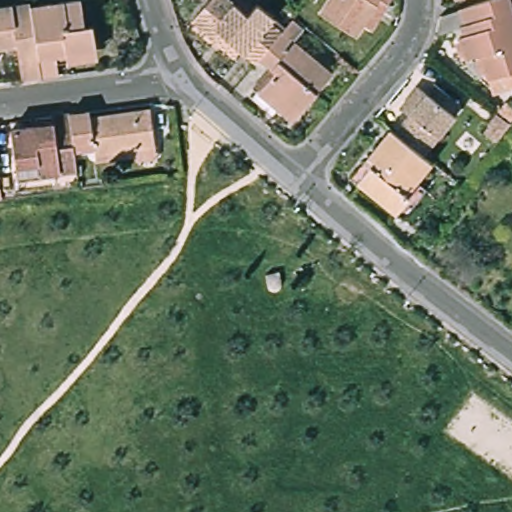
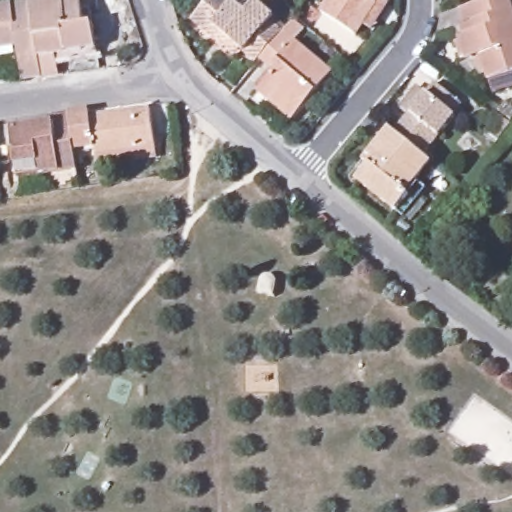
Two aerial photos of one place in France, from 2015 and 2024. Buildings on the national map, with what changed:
unchanged [(35,71),(14,74),(10,43),(0,44),(0,0),(2,0),(25,0),(35,71)]
unchanged [(49,56),(50,69),(35,71),(25,0),(76,0),(78,16),(86,15),(90,41),(92,50),(49,56)]
unchanged [(241,52),(234,60),(188,20),(204,0),(233,0),(245,11),(253,1),(271,16),(268,20),(281,31),(259,56),(256,59),(253,63),(241,52)]
unchanged [(324,0),(386,0),(368,29),(361,25),(354,37),(316,12),(324,0)]
unchanged [(484,0),(508,0),(512,13),(512,74),(489,82),(479,58),(466,62),(458,39),(468,36),(459,10),(484,0)]
unchanged [(329,71),(288,120),(253,91),(270,71),(256,59),(259,56),(281,31),(329,71)]
unchanged [(390,133),(431,84),(457,104),(447,116),(448,120),(419,157),(390,133)]
unchanged [(137,164),(136,158),(98,164),(98,156),(73,160),(68,114),(88,112),(89,119),(149,110),(155,148),(157,161),(137,164)]
unchanged [(68,114),(73,160),(74,168),(17,175),(10,131),(38,128),(38,132),(53,130),(51,117),(68,114)]
unchanged [(424,162),(409,181),(412,184),(389,211),(351,180),(366,159),(363,155),(385,129),(390,133),(419,157),(424,162)]

